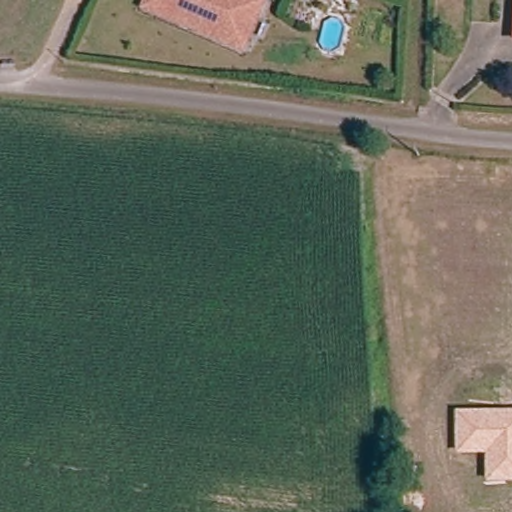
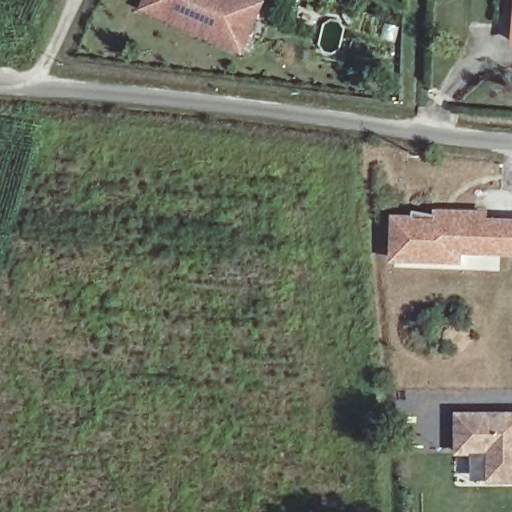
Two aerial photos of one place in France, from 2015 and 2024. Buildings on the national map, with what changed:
unchanged [(153,4),(154,0),(266,0),(247,45),(153,4)]
new [(412,216),(436,216),(436,219),(462,220),(462,211),(485,211),(485,219),(501,219),(512,219),(512,251),(501,251),(462,250),(462,263),(411,262),(393,262),(393,255),(394,224),(412,224),(412,216)]
unchanged [(456,456),(455,410),(512,410),(512,483),(486,484),(485,455),(456,456)]

